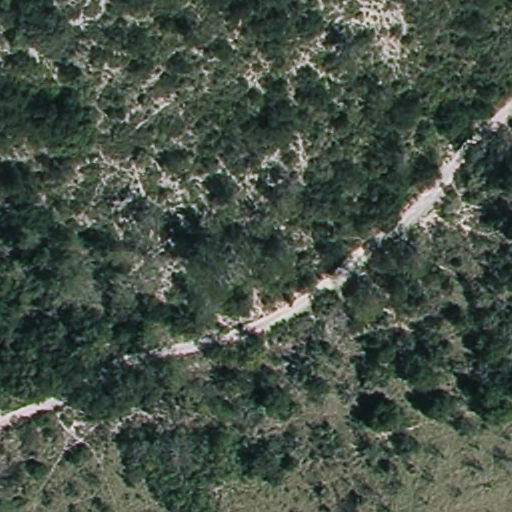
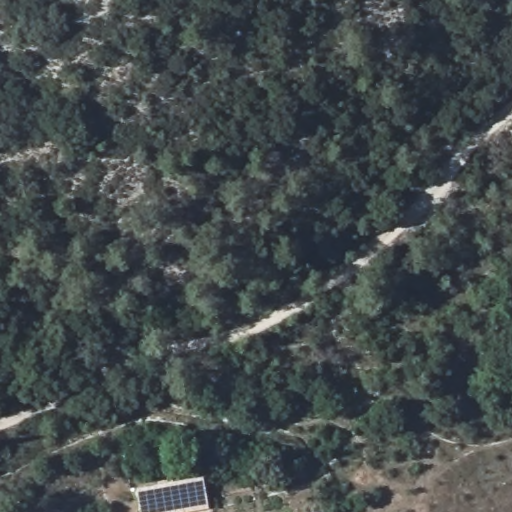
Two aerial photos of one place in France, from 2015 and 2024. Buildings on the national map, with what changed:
new [(203,477),(207,507),(178,512),(141,512),(137,489),(203,477)]

